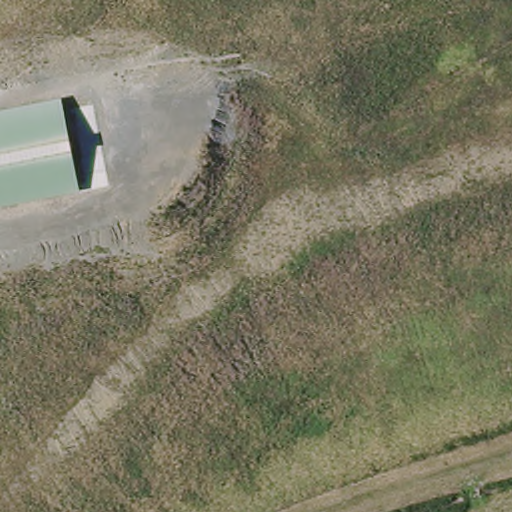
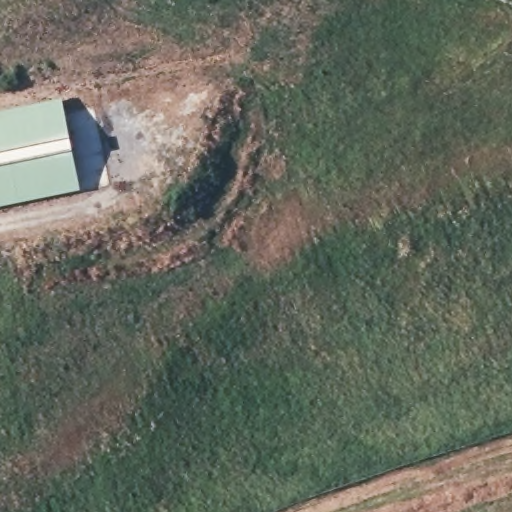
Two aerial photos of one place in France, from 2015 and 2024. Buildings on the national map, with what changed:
unchanged [(78,190),(0,205),(0,112),(61,100),(78,190)]

